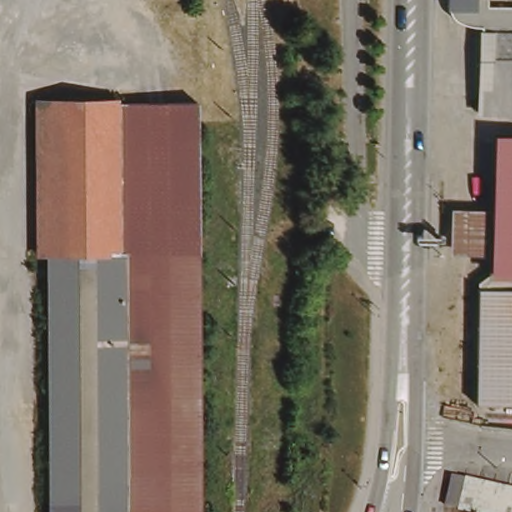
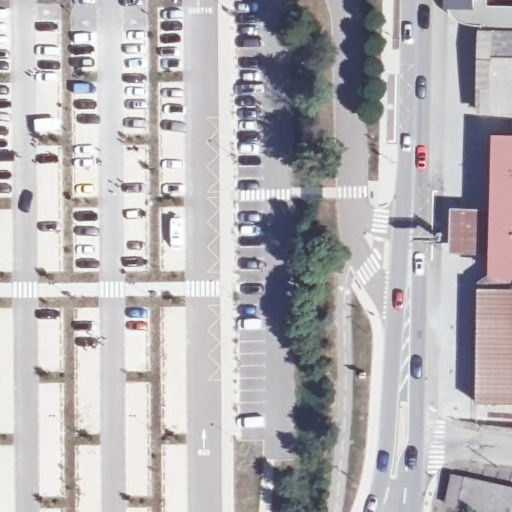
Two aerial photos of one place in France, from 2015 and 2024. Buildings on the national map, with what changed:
unchanged [(488,20),(475,20),(467,15),(462,6),(512,6),(512,112),(486,111),(488,20)]
demolished [(120,260),(115,260),(113,106),(201,105),(201,512),(195,512),(196,262),(120,260)]
demolished [(115,260),(46,260),(45,106),(113,106),(115,260)]
unchanged [(505,138),(512,138),(512,274),(502,273),(505,138)]
demolished [(120,260),(121,512),(48,512),(46,260),(115,260),(120,260)]
demolished [(196,262),(195,512),(121,512),(120,260),(196,262)]
new [(482,362),(485,292),(502,273),(512,274),(512,406),(480,405),(482,362)]
unchanged [(512,512),(471,512),(471,510),(457,507),(458,498),(463,481),(476,485),(477,480),(512,488),(512,512)]

